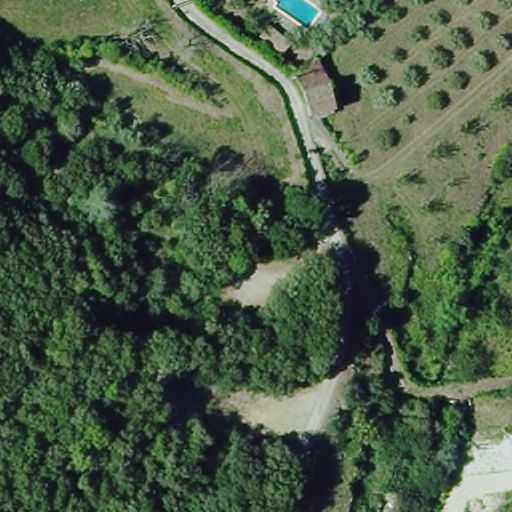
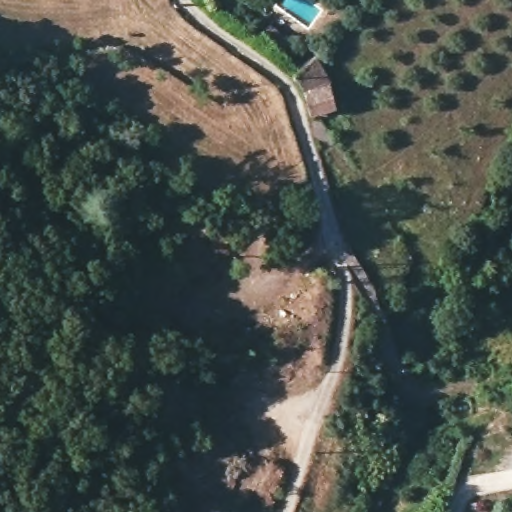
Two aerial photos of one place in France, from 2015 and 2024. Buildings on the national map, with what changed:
unchanged [(294,70),(314,56),(333,75),(345,111),(329,115),(321,122),(314,93),(294,70)]
unchanged [(0,190),(9,194),(0,211),(0,190)]

